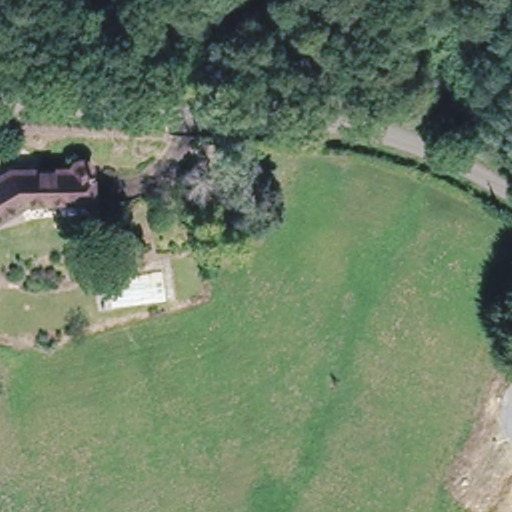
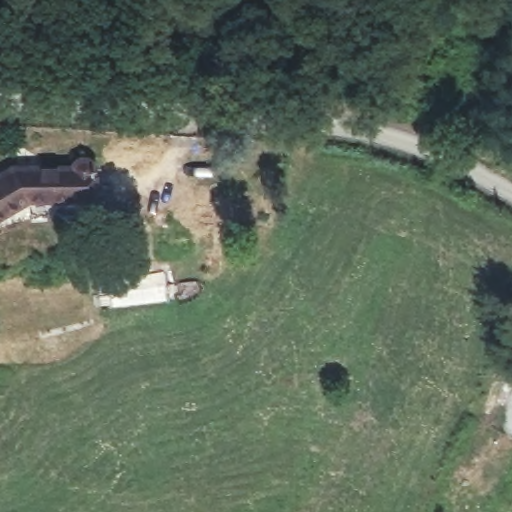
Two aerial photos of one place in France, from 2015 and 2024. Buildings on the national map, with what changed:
unchanged [(93,195),(26,195),(0,209),(0,172),(15,164),(83,163),(87,155),(98,155),(93,195)]

